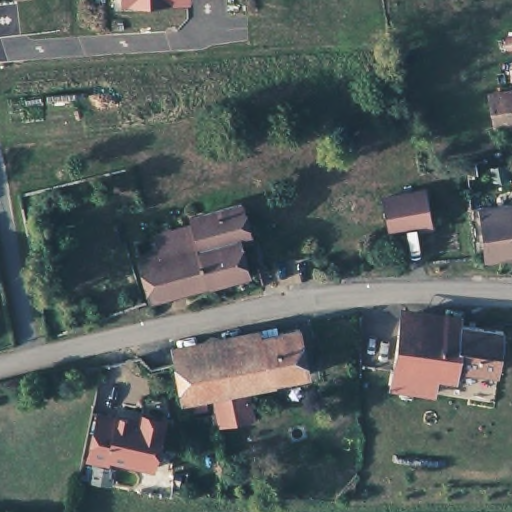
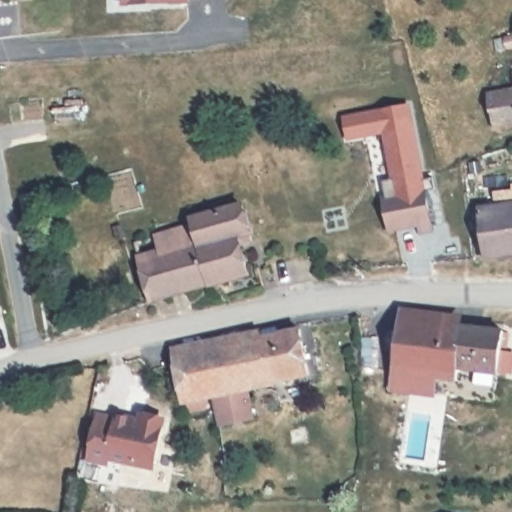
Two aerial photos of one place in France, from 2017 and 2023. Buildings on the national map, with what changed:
unchanged [(122,4),(122,0),(189,0),(190,0),(122,4)]
unchanged [(487,134),(483,101),(511,97),(508,81),(512,80),(512,131),(487,134)]
new [(417,232),(417,226),(387,231),(380,195),(385,194),(382,180),(391,177),(381,133),(346,139),(341,114),(410,102),(434,229),(417,232)]
demolished [(405,232),(376,236),(371,205),(412,197),(417,228),(405,232)]
unchanged [(480,263),(477,214),(512,210),(512,260),(480,264),(476,264),(480,263)]
unchanged [(125,248),(182,232),(180,225),(231,211),(240,238),(227,242),(238,279),(141,307),(125,248)]
unchanged [(382,395),(385,379),(391,325),(492,336),(488,378),(462,376),(460,389),(426,383),(424,399),(382,395)]
unchanged [(271,334),(272,341),(294,337),(304,384),(242,396),(249,427),(215,433),(207,403),(177,410),(167,360),(255,344),(254,338),(271,334)]
unchanged [(108,461),(107,466),(87,462),(97,417),(116,421),(117,417),(141,423),(141,420),(162,425),(152,471),(108,461)]

